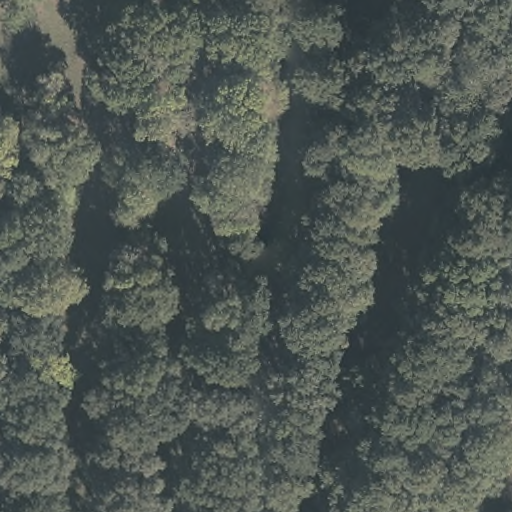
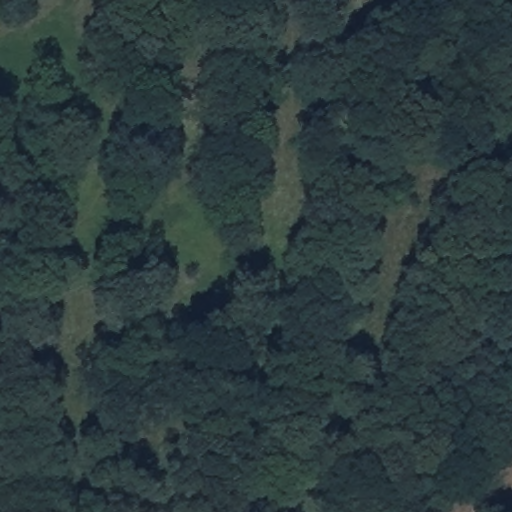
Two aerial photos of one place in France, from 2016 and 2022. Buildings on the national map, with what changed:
[]

